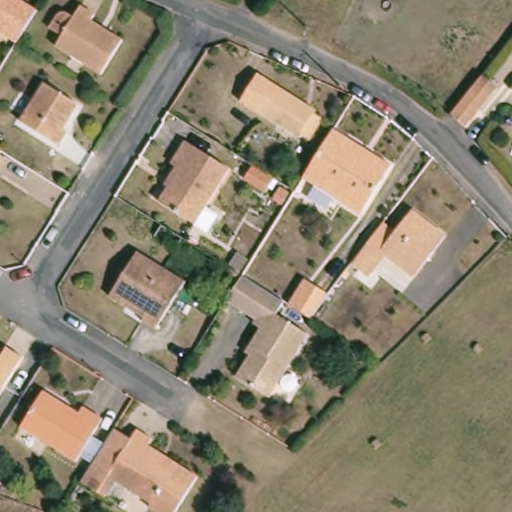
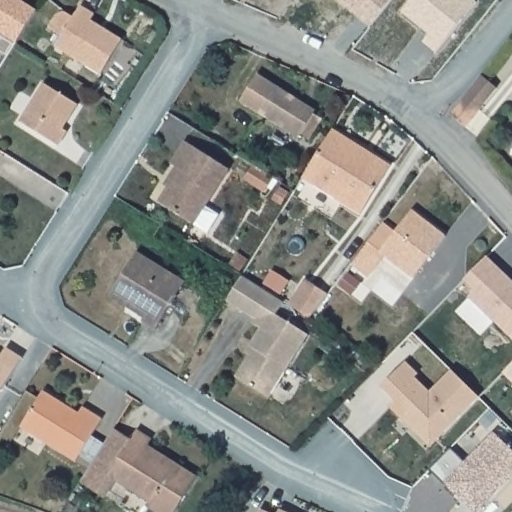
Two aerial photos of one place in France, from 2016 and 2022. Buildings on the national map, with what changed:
unchanged [(0,36),(0,0),(15,0),(32,11),(12,43),(0,36)]
unchanged [(76,12),(90,20),(87,27),(117,46),(96,80),(51,52),(58,42),(44,33),(51,23),(52,21),(53,20),(55,19),(56,18),(57,18),(58,18),(59,18),(61,18),(69,23),(76,12)]
unchanged [(466,127),(451,115),(482,76),(497,89),(466,127)]
unchanged [(21,122),(44,84),(78,105),(64,129),(67,132),(59,146),(21,122)]
unchanged [(296,141),(294,144),(255,120),(272,92),(311,117),(309,120),(318,125),(305,146),(296,141)]
unchanged [(334,136),(391,171),(361,219),(303,184),(334,136)]
unchanged [(191,229),(155,207),(175,174),(166,168),(180,146),(225,174),(201,212),(218,223),(208,240),(191,229)]
unchanged [(352,270),(368,250),(384,228),(396,238),(413,216),(446,242),(414,283),(385,263),(369,283),(352,270)]
unchanged [(110,297),(138,253),(185,283),(156,330),(142,322),(144,319),(126,307),(110,297)]
new [(464,280),(487,256),(512,280),(512,337),(511,338),(469,297),(474,291),(464,280)]
unchanged [(236,258),(244,263),(237,275),(229,270),(236,258)]
unchanged [(246,349),(258,332),(250,327),(252,324),(224,305),(239,279),(281,305),(273,318),(305,339),(267,401),(233,380),(246,360),(242,357),(246,349)]
unchanged [(302,283),(324,300),(307,322),(284,307),(302,283)]
unchanged [(2,354),(18,364),(0,393),(0,357),(2,354)]
new [(395,400),(382,386),(407,361),(419,374),(416,377),(431,391),(452,370),(480,398),(431,446),(390,407),(395,400)]
new [(512,365),(512,381),(504,373),(512,365)]
unchanged [(76,467),(21,433),(44,397),(80,419),(84,413),(103,424),(76,467)]
new [(452,449),(466,462),(494,433),(512,449),(512,475),(477,511),(446,482),(431,469),(452,449)]
unchanged [(133,435),(148,445),(144,451),(163,463),(193,483),(175,512),(145,512),(146,509),(112,486),(100,503),(76,488),(110,434),(126,445),(133,435)]
new [(272,512),(260,512),(261,509),(272,512)]
new [(288,512),(280,512),(281,509),(288,512)]

